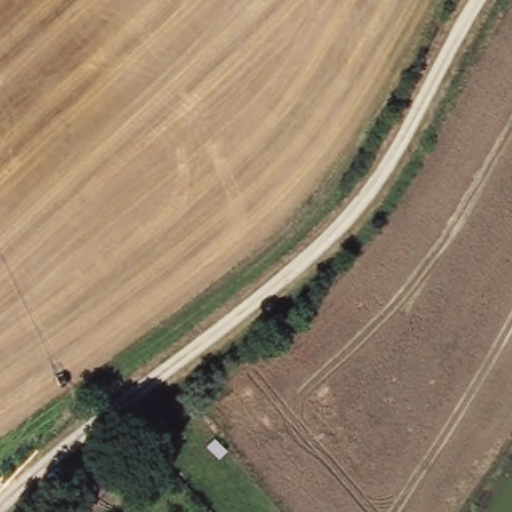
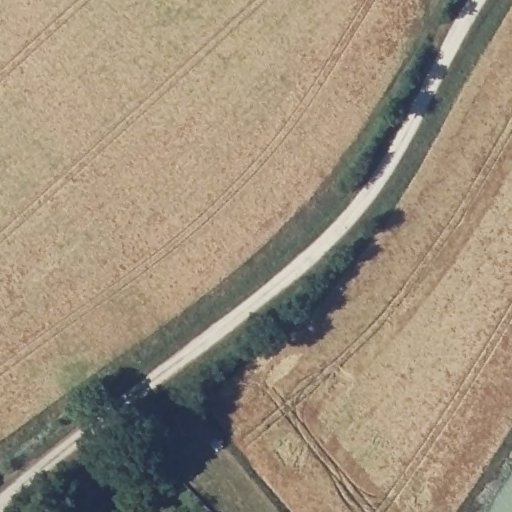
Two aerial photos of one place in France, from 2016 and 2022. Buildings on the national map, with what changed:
unchanged [(88,463),(107,485),(76,512),(56,512),(45,500),(88,463)]

